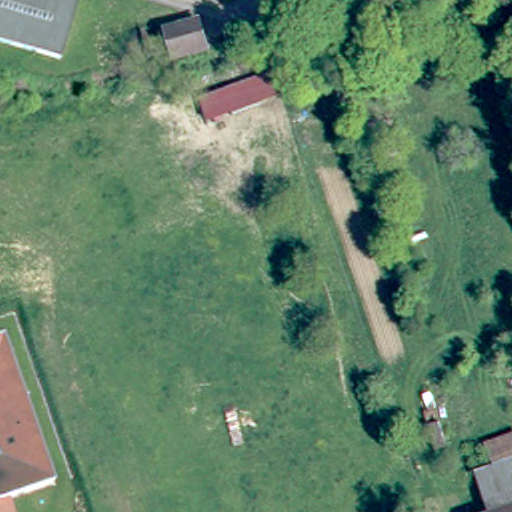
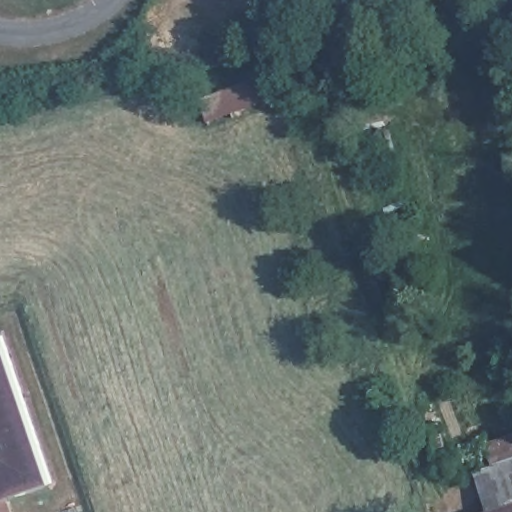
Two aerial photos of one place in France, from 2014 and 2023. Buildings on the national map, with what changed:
demolished [(0,42),(0,0),(75,0),(57,59),(0,42)]
demolished [(177,28),(214,20),(220,48),(183,56),(181,46),(177,28)]
unchanged [(50,481),(11,495),(16,512),(0,512),(0,460),(0,338),(2,337),(50,481)]
unchanged [(492,469),(512,464),(512,508),(502,511),(492,469)]
unchanged [(502,511),(512,508),(512,512),(495,512),(502,511)]

